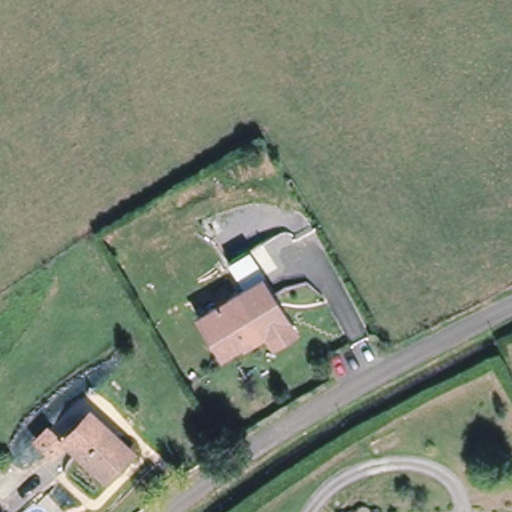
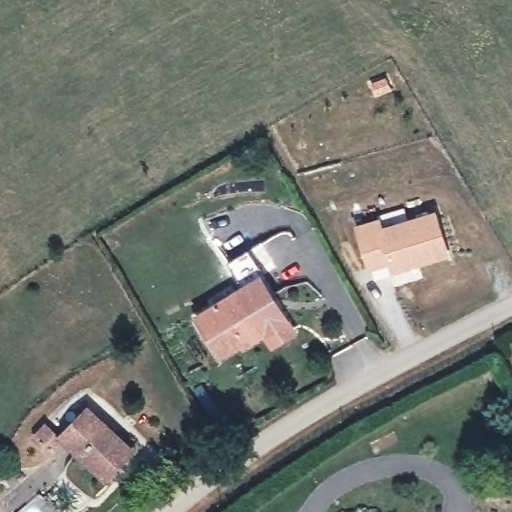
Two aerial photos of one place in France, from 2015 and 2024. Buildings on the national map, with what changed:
new [(355,226),(381,218),(383,226),(437,210),(451,257),(391,275),(388,266),(369,271),(355,226)]
unchanged [(270,353),(262,340),(242,352),(240,348),(217,359),(196,322),(261,283),(284,325),(293,340),(270,353)]
unchanged [(130,455),(104,481),(64,438),(90,412),(130,455)]

